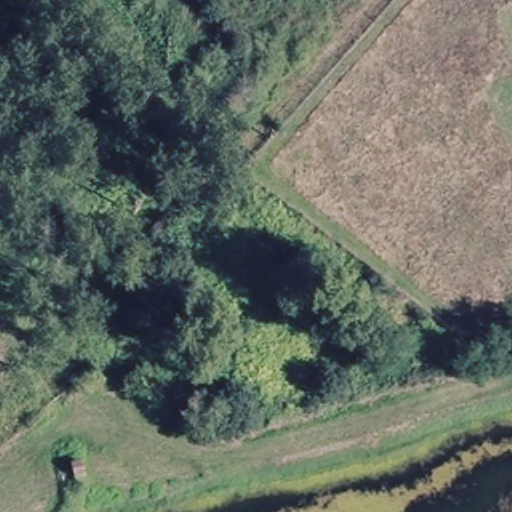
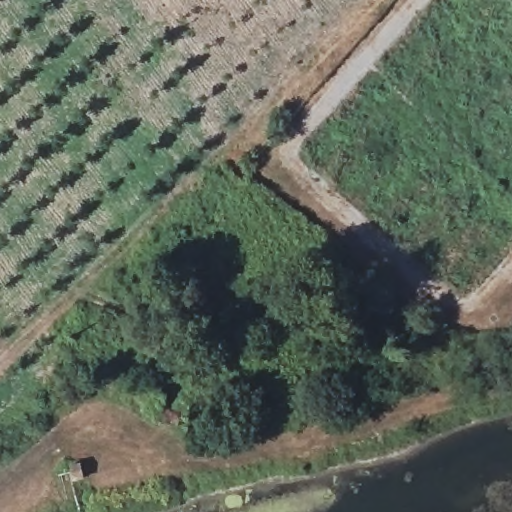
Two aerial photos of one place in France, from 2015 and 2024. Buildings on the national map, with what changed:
unchanged [(66,476),(71,461),(84,461),(83,476),(66,476)]

